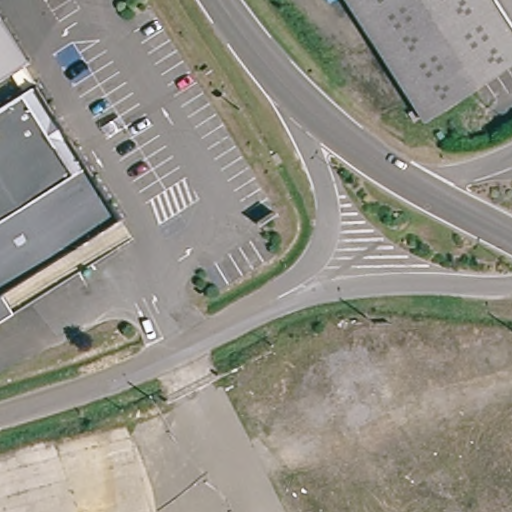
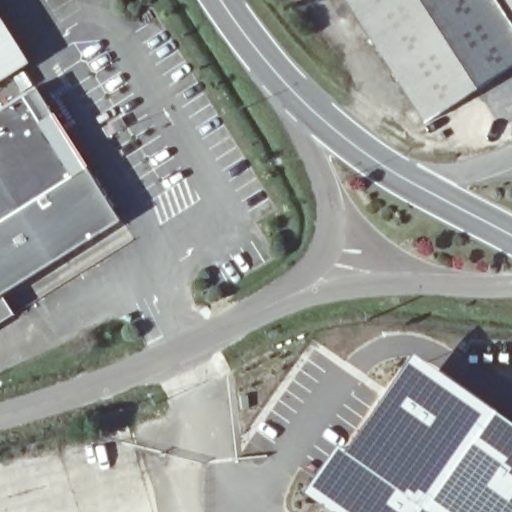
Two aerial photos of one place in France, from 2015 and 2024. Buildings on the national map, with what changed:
unchanged [(341,0),(332,5),(328,0),(341,0)]
unchanged [(348,0),(512,0),(512,70),(427,125),(348,0)]
unchanged [(0,82),(0,14),(31,62),(0,82)]
unchanged [(90,160),(0,216),(0,106),(39,81),(90,160)]
unchanged [(413,110),(418,116),(410,121),(406,114),(413,110)]
unchanged [(0,319),(0,216),(90,160),(124,215),(6,290),(17,308),(0,320),(0,319)]
new [(350,452),(417,354),(512,420),(512,512),(336,512),(308,491),(340,445),(350,452)]

